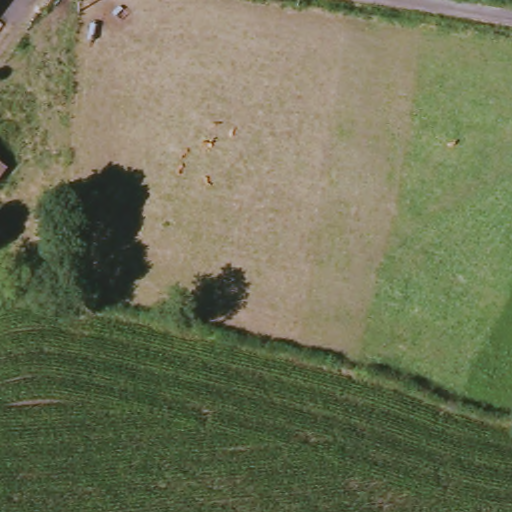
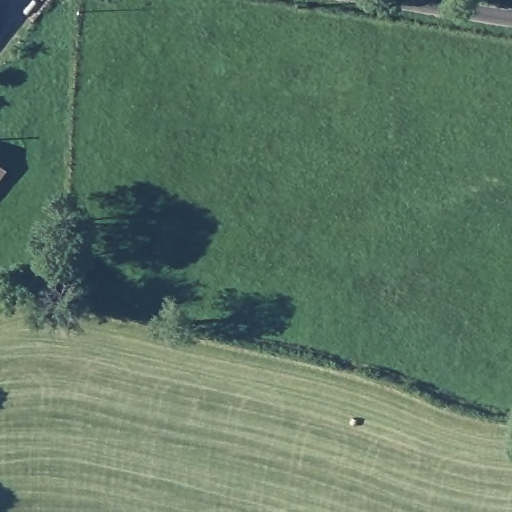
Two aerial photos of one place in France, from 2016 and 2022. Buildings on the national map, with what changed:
unchanged [(0,100),(0,82),(10,89),(0,100)]
unchanged [(0,177),(0,165),(6,169),(0,177)]

